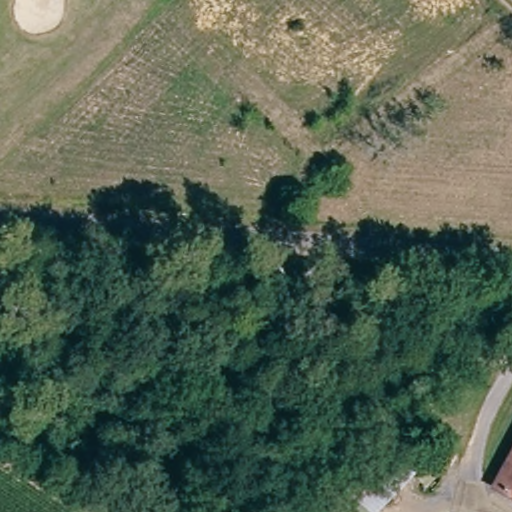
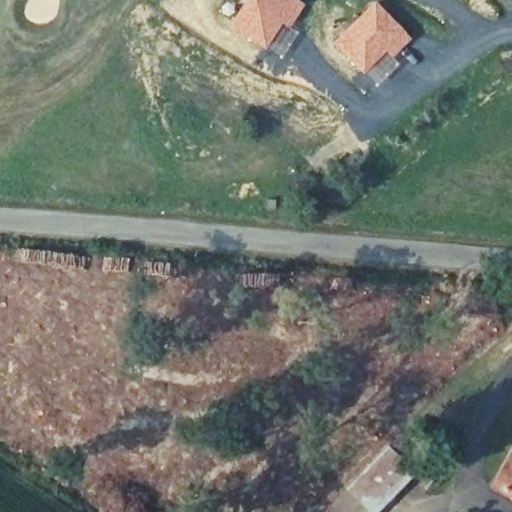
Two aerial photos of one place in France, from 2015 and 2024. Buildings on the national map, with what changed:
new [(298,0),(304,4),(288,30),(282,27),(267,51),(227,27),(244,0),(298,0)]
new [(374,0),(411,40),(393,59),(399,65),(377,87),(331,42),(374,0)]
unchanged [(373,512),(370,512),(350,486),(392,445),(416,472),(373,512)]
unchanged [(493,487),(512,453),(512,496),(493,487)]
unchanged [(333,496),(345,512),(319,512),(333,496)]

